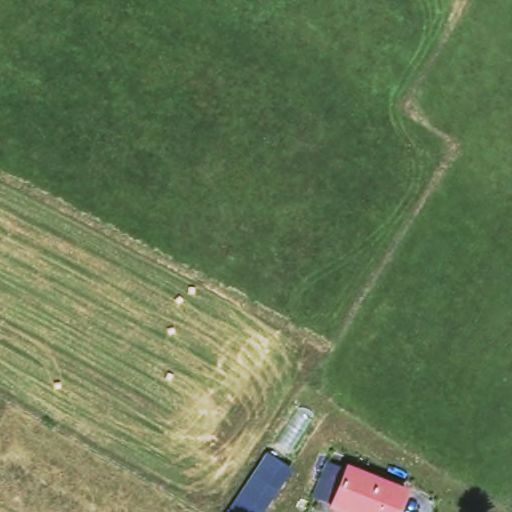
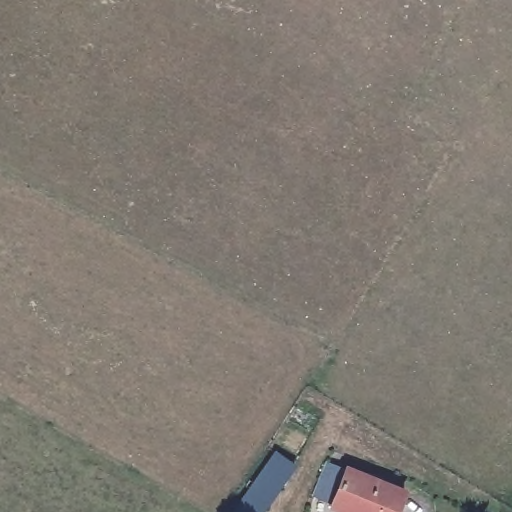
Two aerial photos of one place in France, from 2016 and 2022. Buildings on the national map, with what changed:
unchanged [(262,512),(227,512),(265,454),(290,470),(262,512)]
unchanged [(313,498),(326,463),(344,471),(346,466),(407,489),(398,512),(333,512),(328,510),(330,504),(313,498)]

